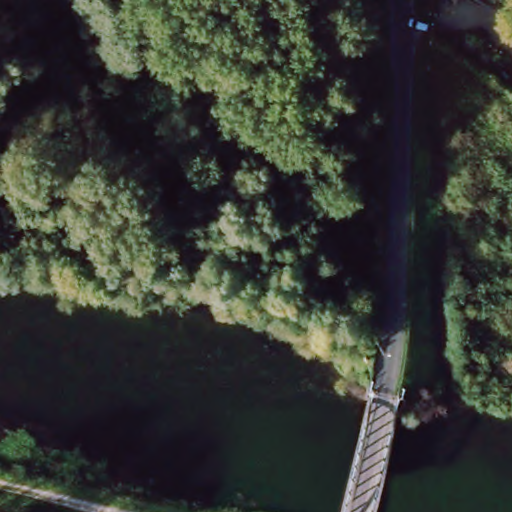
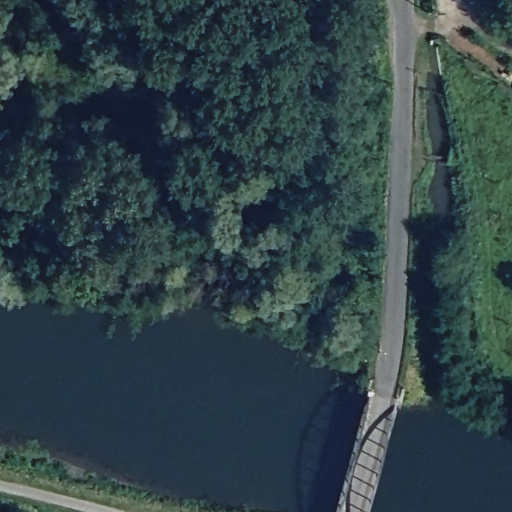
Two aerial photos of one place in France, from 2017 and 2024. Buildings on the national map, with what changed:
[]

